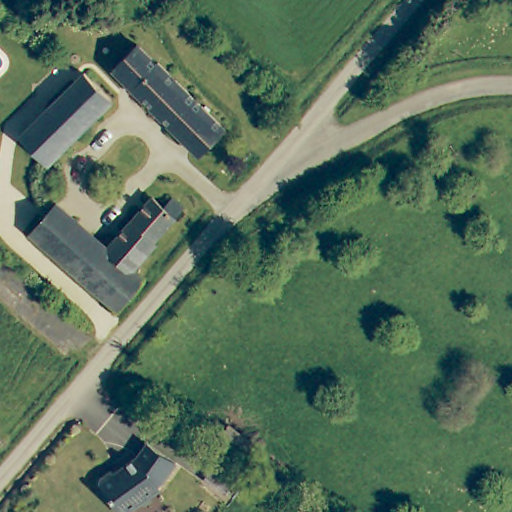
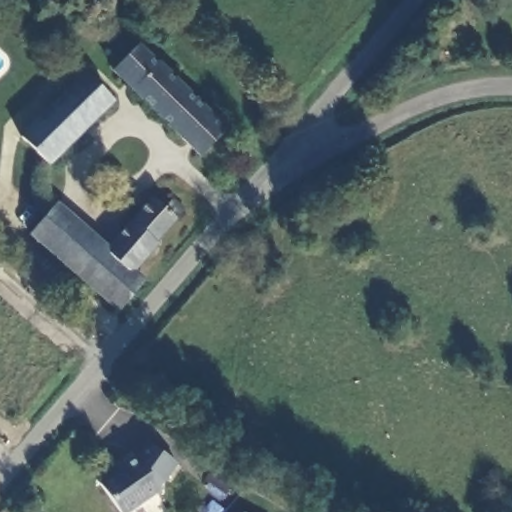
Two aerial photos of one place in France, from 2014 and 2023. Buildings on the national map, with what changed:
unchanged [(112,71),(138,44),(228,131),(202,157),(112,71)]
unchanged [(46,166),(16,139),(91,62),(120,90),(46,166)]
unchanged [(63,194),(119,244),(173,184),(194,202),(165,234),(169,237),(143,265),(153,272),(112,320),(21,242),(63,194)]
unchanged [(214,438),(229,417),(254,440),(242,457),(214,438)]
unchanged [(177,457),(165,477),(157,483),(160,487),(122,512),(99,479),(101,473),(110,467),(115,468),(139,452),(147,438),(177,457)]

